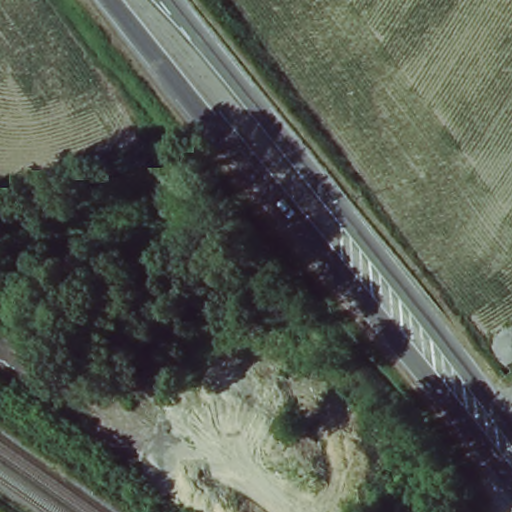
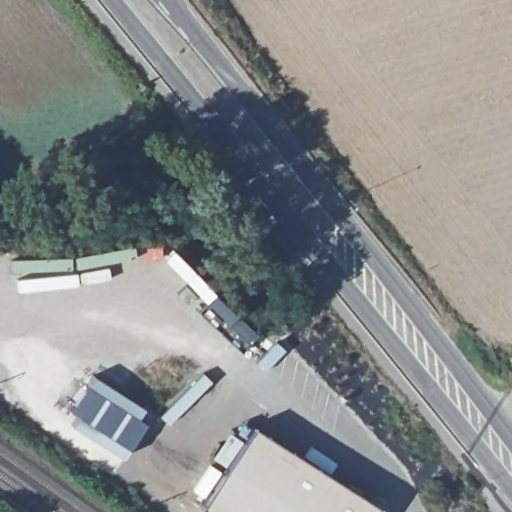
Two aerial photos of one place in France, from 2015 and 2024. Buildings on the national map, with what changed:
new [(143,432),(118,468),(65,432),(89,397),(143,432)]
new [(251,424),(379,507),(376,512),(205,512),(199,508),(251,424)]

